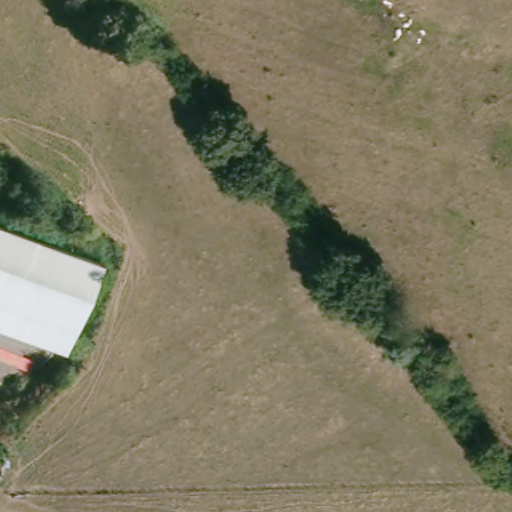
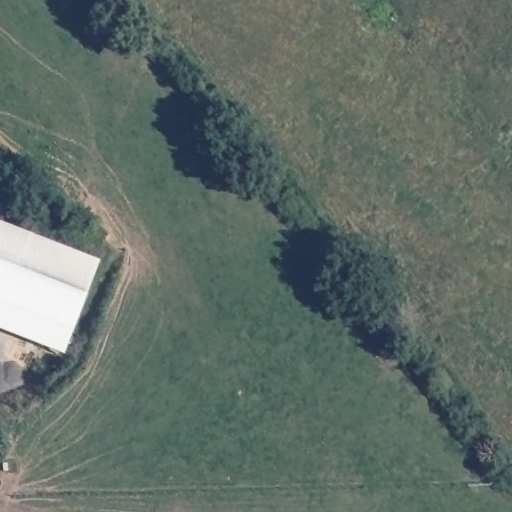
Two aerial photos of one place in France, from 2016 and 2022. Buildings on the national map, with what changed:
unchanged [(102,263),(70,356),(0,330),(0,225),(102,263)]

